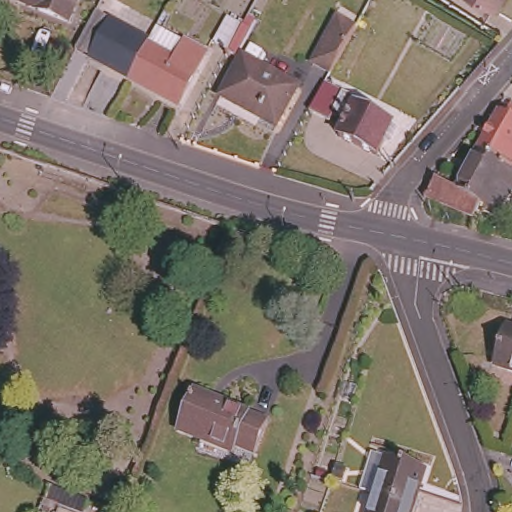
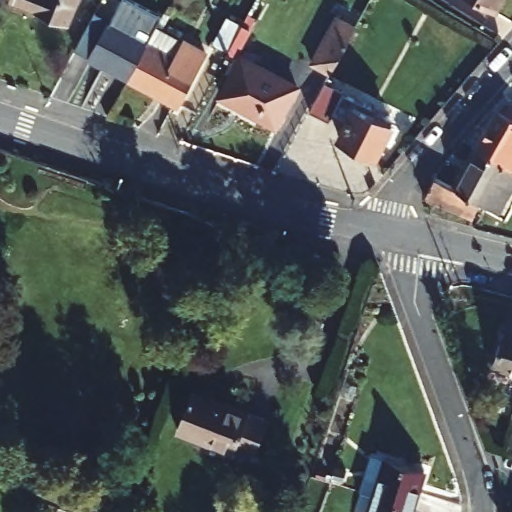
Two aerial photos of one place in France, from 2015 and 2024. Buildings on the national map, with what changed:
unchanged [(16,0),(77,0),(68,21),(16,0)]
unchanged [(467,0),(500,0),(491,14),(467,0)]
unchanged [(234,45),(218,36),(231,11),(248,19),(253,9),(261,14),(256,24),(253,23),(239,49),(233,47),(234,45)]
unchanged [(100,11),(153,39),(152,41),(133,76),(80,48),(100,11)]
unchanged [(330,72),(311,62),(338,15),(356,25),(330,72)]
unchanged [(152,41),(180,57),(189,40),(210,52),(183,103),(133,76),(152,41)]
unchanged [(226,90),(247,51),(301,81),(281,119),(226,90)]
unchanged [(391,149),(384,145),(376,159),(339,141),(348,123),(334,116),(330,126),(309,115),(324,87),(375,113),(373,119),(393,129),(399,133),(391,149)]
unchanged [(500,111),(504,103),(512,106),(512,167),(473,148),(494,109),(500,111)]
unchanged [(452,187),(473,148),(512,167),(512,177),(494,212),(475,200),(476,199),(452,187)]
unchanged [(420,195),(431,176),(452,187),(476,199),(475,200),(468,215),(420,195)]
unchanged [(504,325),(512,328),(512,370),(492,363),(504,325)]
unchanged [(177,429),(193,389),(266,419),(253,453),(235,446),(233,451),(177,429)]
unchanged [(386,456),(423,469),(411,507),(380,498),(374,496),(386,456)]
unchanged [(58,506),(43,499),(48,485),(87,499),(82,512),(56,512),(58,506)]
unchanged [(380,498),(411,507),(409,512),(368,512),(374,496),(380,498)]

